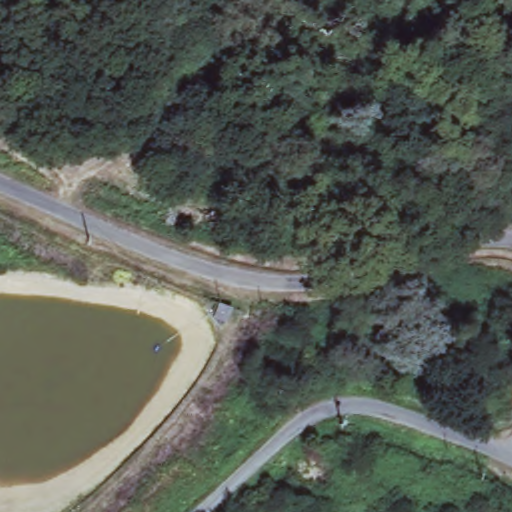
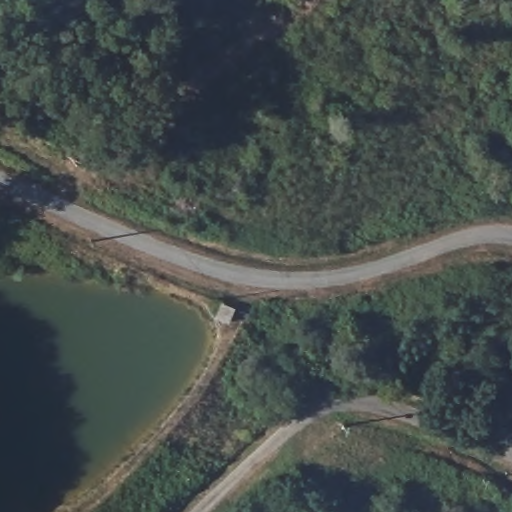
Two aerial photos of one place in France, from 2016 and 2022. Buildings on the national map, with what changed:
unchanged [(238,309),(232,324),(216,319),(221,304),(238,309)]

